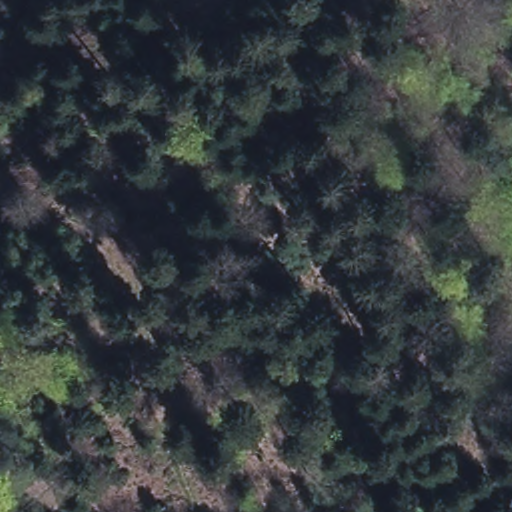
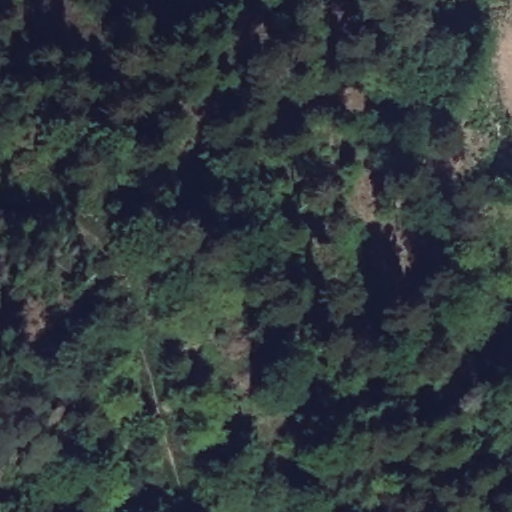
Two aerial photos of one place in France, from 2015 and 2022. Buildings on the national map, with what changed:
[]

